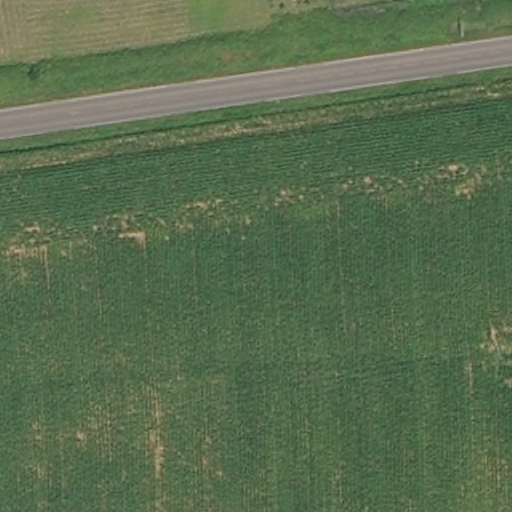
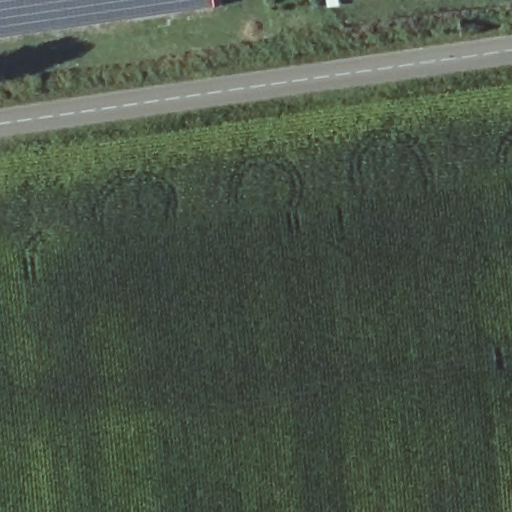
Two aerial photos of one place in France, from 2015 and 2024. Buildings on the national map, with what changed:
new [(0,39),(0,0),(215,0),(216,8),(0,39)]

